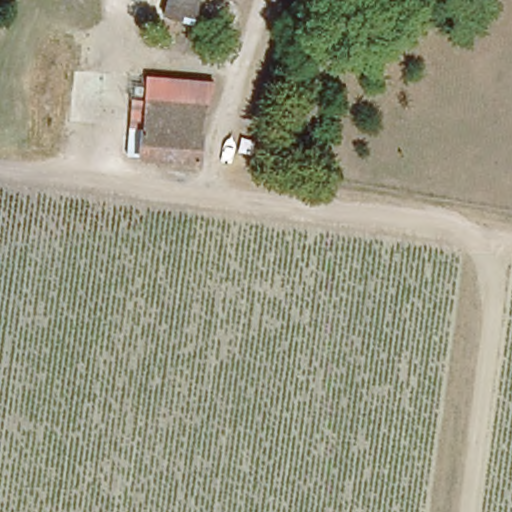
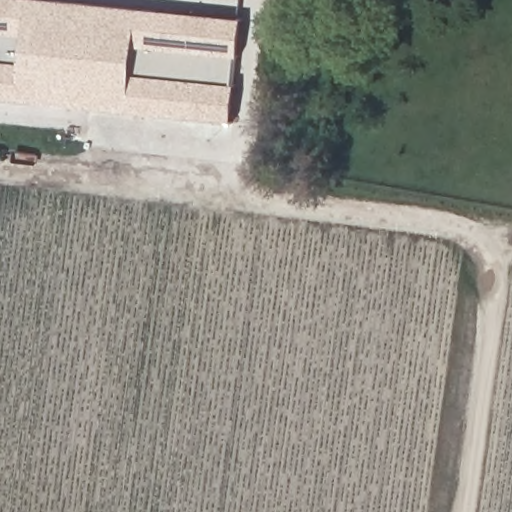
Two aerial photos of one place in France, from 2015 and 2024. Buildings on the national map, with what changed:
new [(233,122),(0,100),(0,0),(42,0),(243,21),(233,122)]
demolished [(200,163),(138,158),(138,156),(127,155),(130,127),(140,127),(146,77),(214,82),(200,163)]

